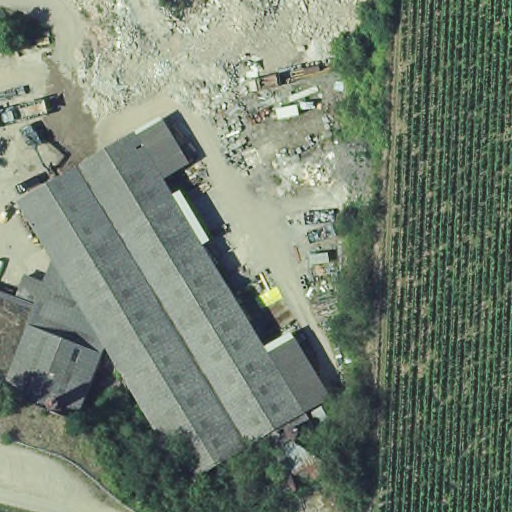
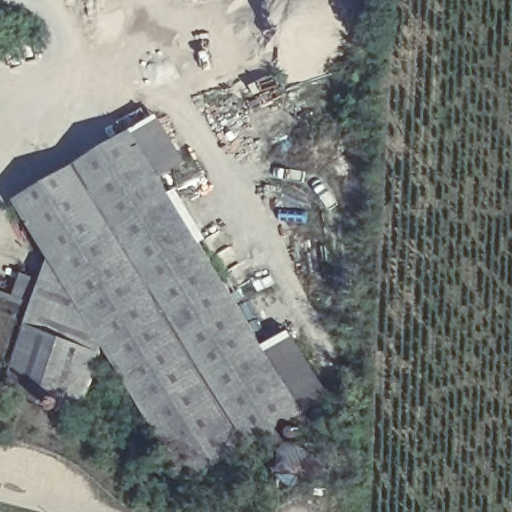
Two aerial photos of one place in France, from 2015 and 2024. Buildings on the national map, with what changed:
unchanged [(162,111),(188,155),(162,169),(136,126),(162,111)]
unchanged [(21,265),(42,272),(51,247),(20,195),(136,126),(162,169),(263,340),(301,404),(305,410),(317,402),(326,417),(291,437),(331,460),(279,488),(280,444),(257,457),(246,440),(185,474),(101,333),(73,410),(0,384),(0,284),(13,288),(21,265)]
unchanged [(290,326),(327,390),(301,404),(263,340),(290,326)]

